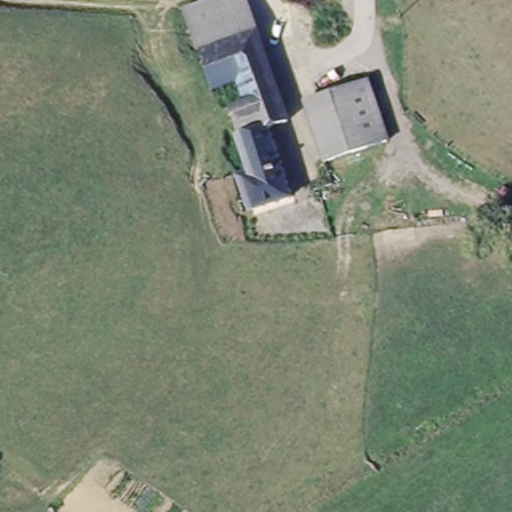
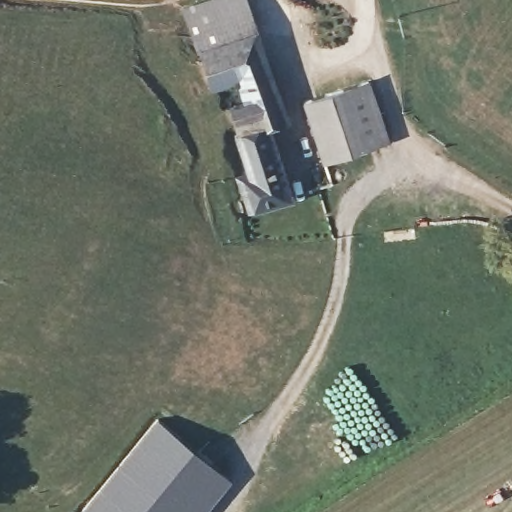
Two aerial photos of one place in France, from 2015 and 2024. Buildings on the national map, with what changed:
unchanged [(287,186),(244,197),(233,162),(244,155),(239,133),(245,129),(238,112),(252,107),(240,81),(214,92),(180,13),(211,0),(246,0),(291,112),(271,120),(287,186)]
unchanged [(374,82),(393,160),(345,171),(328,95),(374,82)]
unchanged [(328,95),(345,171),(318,177),(301,101),(328,95)]
new [(79,512),(154,418),(228,477),(201,512),(80,512),(79,512)]

